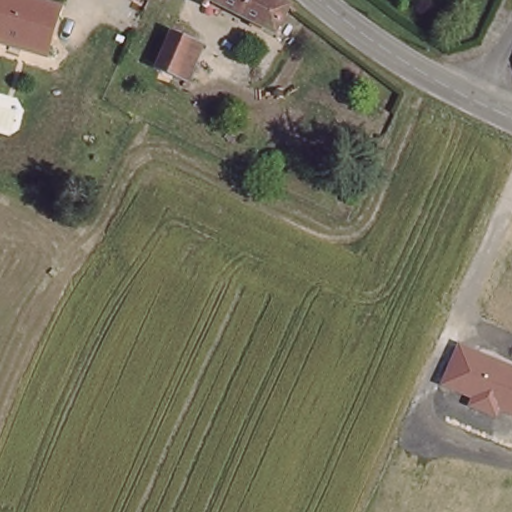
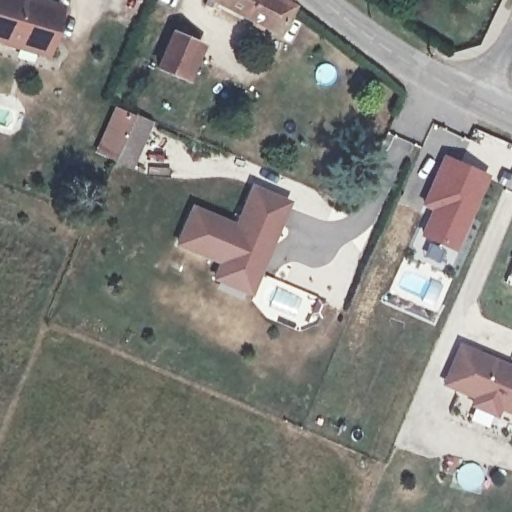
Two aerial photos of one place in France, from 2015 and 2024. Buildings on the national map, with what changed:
unchanged [(5,39),(3,45),(0,44),(0,0),(20,0),(63,14),(50,53),(5,39)]
unchanged [(275,33),(206,4),(208,0),(281,0),(284,1),(286,4),(275,33)]
unchanged [(158,70),(175,32),(197,42),(190,60),(201,65),(192,84),(158,70)]
new [(132,167),(95,150),(114,105),(152,121),(132,167)]
new [(457,252),(418,235),(429,209),(419,204),(442,154),(490,175),(457,252)]
new [(173,242),(188,207),(231,224),(247,185),(282,199),(264,244),(259,244),(256,250),(261,252),(251,274),(245,290),(210,275),(216,259),(173,242)]
unchanged [(512,366),(512,413),(500,409),(496,416),(468,405),(471,396),(441,384),(458,344),(512,366)]

